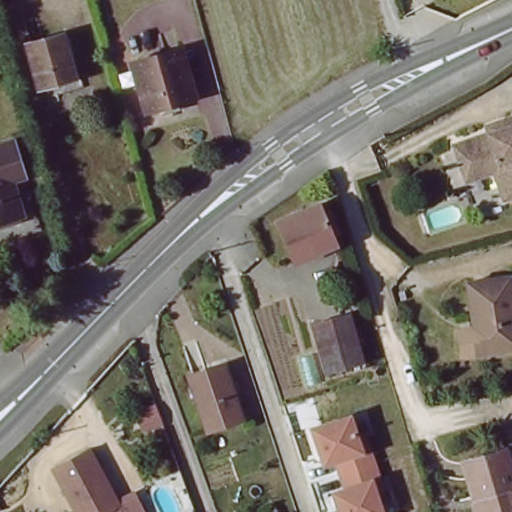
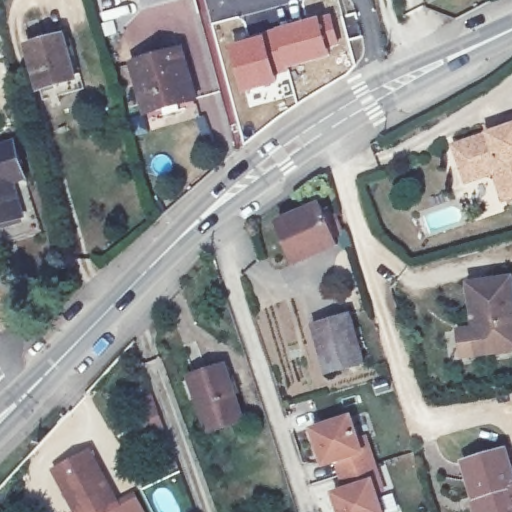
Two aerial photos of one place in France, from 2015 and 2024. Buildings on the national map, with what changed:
new [(332,13),(341,44),(329,47),(331,57),(276,74),(266,32),(332,13)]
unchanged [(63,31),(76,78),(40,88),(26,41),(63,31)]
new [(266,32),(276,74),(279,81),(241,92),(229,44),(266,32)]
unchanged [(193,50),(207,102),(156,116),(140,65),(193,50)]
unchanged [(497,199),(487,170),(460,179),(448,142),(484,130),(481,122),(509,112),(512,112),(512,194),(497,199)]
unchanged [(34,221),(0,232),(0,137),(8,134),(34,221)]
unchanged [(345,244),(294,265),(276,220),(327,200),(345,244)]
unchanged [(471,324),(465,285),(508,278),(512,309),(512,350),(483,355),(476,356),(471,324)]
unchanged [(351,317),(364,364),(328,375),(314,327),(351,317)]
unchanged [(190,375),(223,365),(241,419),(208,430),(190,375)]
unchanged [(373,435),(387,491),(376,497),(384,512),(338,512),(331,492),(346,486),(340,462),(321,470),(309,428),(357,414),(362,437),(373,435)]
unchanged [(138,499),(143,512),(79,512),(59,467),(98,450),(123,506),(138,499)]
unchanged [(474,497),(464,463),(506,451),(512,471),(512,512),(474,512),(470,498),(474,497)]

